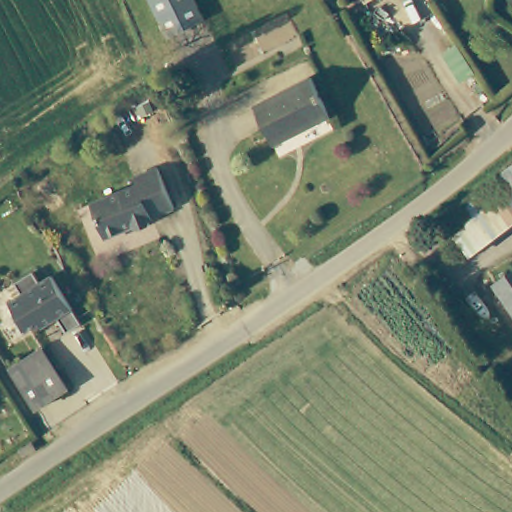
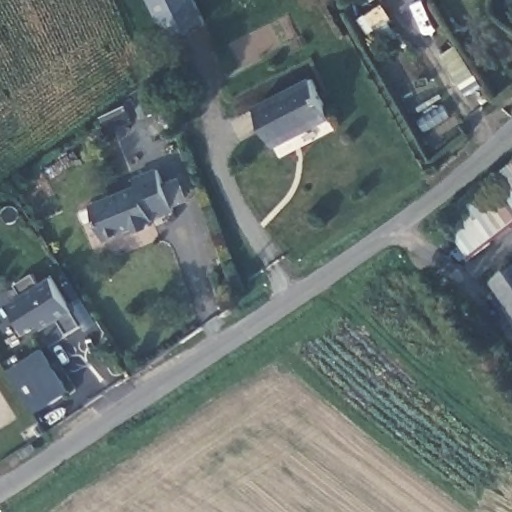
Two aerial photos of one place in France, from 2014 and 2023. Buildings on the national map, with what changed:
unchanged [(177,42),(156,0),(200,0),(212,24),(177,42)]
unchanged [(260,112),(313,85),(333,123),(278,150),(260,112)]
unchanged [(512,208),(496,219),(475,191),(512,164),(512,208)]
unchanged [(172,212),(149,224),(149,229),(135,236),(127,232),(106,242),(91,210),(132,190),(130,182),(154,172),(172,212)]
unchanged [(475,191),(496,219),(505,230),(471,252),(445,213),(475,191)]
unchanged [(512,225),(505,230),(496,219),(512,208),(512,225)]
unchanged [(512,273),(512,288),(505,277),(512,273)]
unchanged [(81,325),(68,336),(58,321),(44,330),(40,326),(24,338),(12,320),(15,317),(9,307),(21,298),(14,287),(32,275),(40,286),(50,279),(81,325)]
unchanged [(70,393),(39,415),(15,374),(45,354),(70,393)]

